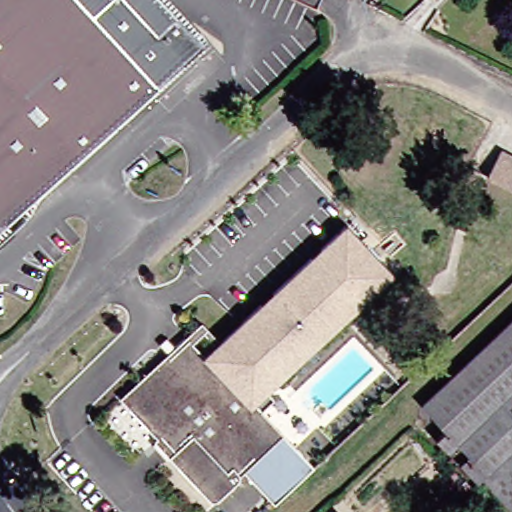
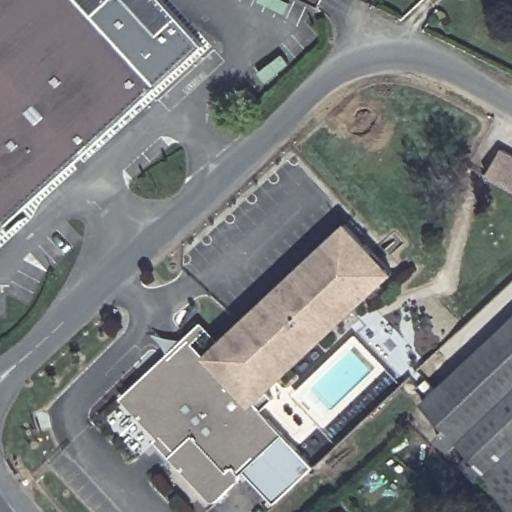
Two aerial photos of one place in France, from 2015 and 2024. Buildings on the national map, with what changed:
unchanged [(194,46),(0,221),(0,0),(152,0),(194,46)]
unchanged [(493,164),(502,147),(512,153),(512,187),(487,174),(493,164)]
unchanged [(262,398),(250,410),(303,467),(263,503),(233,471),(228,475),(229,476),(230,477),(229,478),(227,480),(205,500),(204,501),(203,502),(201,502),(200,501),(159,457),(165,452),(115,398),(177,341),(193,357),(336,223),(383,273),(256,392),(262,398)]
unchanged [(512,512),(507,512),(471,475),(467,478),(452,462),(461,454),(450,442),(440,450),(427,436),(436,428),(412,402),(512,309),(512,512)]

